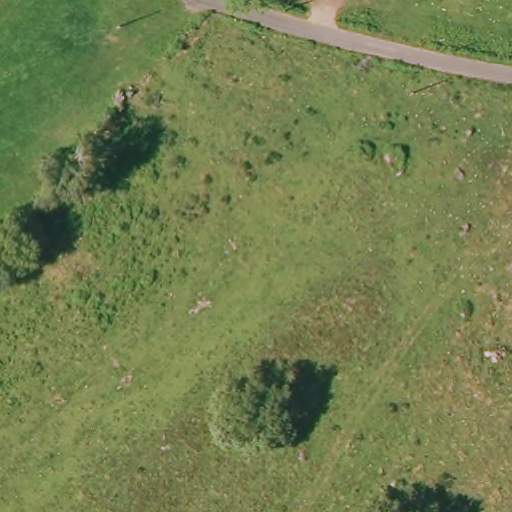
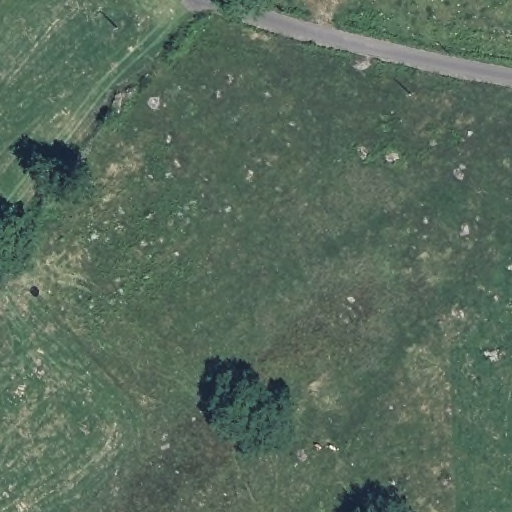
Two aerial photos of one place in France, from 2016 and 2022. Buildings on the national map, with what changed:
[]

